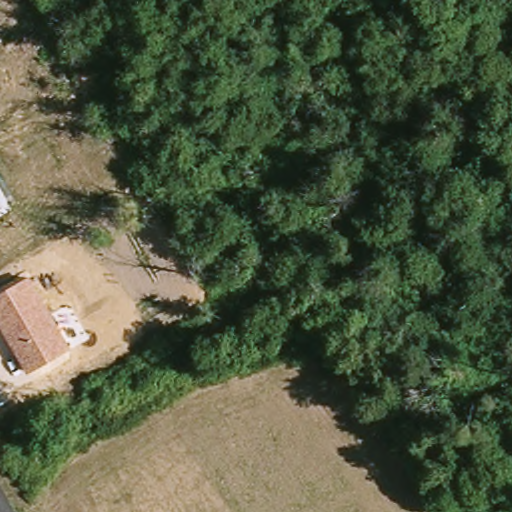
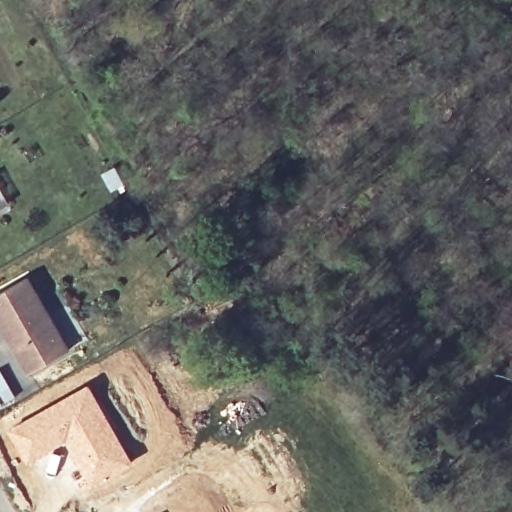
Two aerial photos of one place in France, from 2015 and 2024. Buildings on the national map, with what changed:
unchanged [(70,348),(30,370),(0,315),(0,292),(29,275),(70,348)]
new [(16,396),(0,406),(0,367),(16,396)]
new [(89,382),(114,423),(136,464),(92,489),(64,444),(27,464),(7,429),(89,382)]

